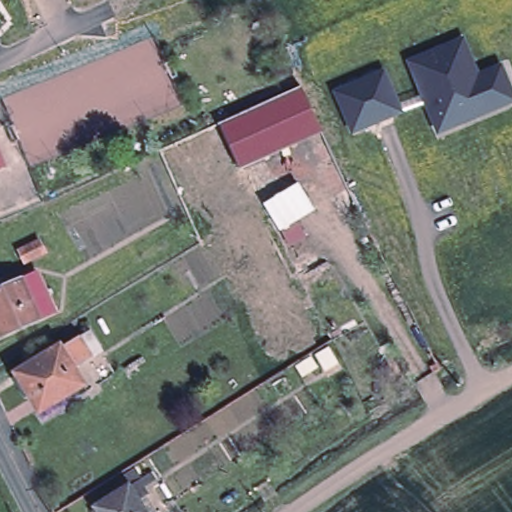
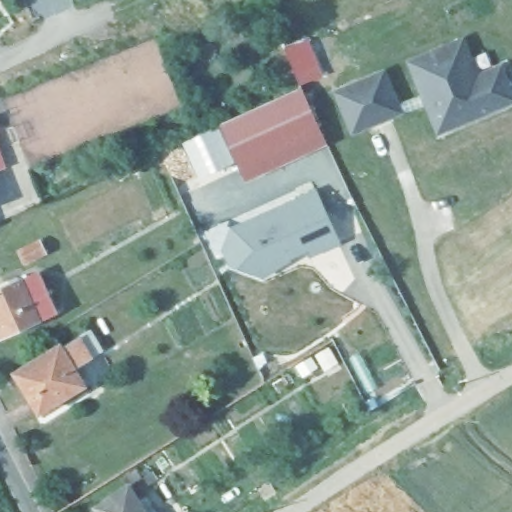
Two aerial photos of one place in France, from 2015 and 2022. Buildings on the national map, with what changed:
unchanged [(459,45),(464,43),(479,79),(500,70),(512,98),(512,103),(509,104),(439,133),(410,65),(459,45)]
unchanged [(397,108),(364,121),(367,127),(353,133),(337,95),(383,75),(397,108)]
unchanged [(240,168),(223,127),(304,91),(321,130),(240,168)]
new [(310,257),(307,252),(291,260),(292,262),(263,278),(229,264),(223,247),(231,226),(316,189),(341,243),(310,257)]
unchanged [(41,256),(21,266),(16,256),(36,246),(41,256)]
unchanged [(37,275),(55,314),(2,337),(0,334),(0,291),(37,275)]
unchanged [(51,348),(68,337),(70,339),(81,333),(94,355),(83,361),(66,372),(75,387),(32,413),(7,373),(50,346),(51,348)]
unchanged [(315,369),(304,376),(299,368),(309,361),(315,369)]
unchanged [(87,508),(120,488),(130,482),(145,474),(150,483),(135,491),(138,495),(146,509),(148,512),(89,512),(87,508)]

